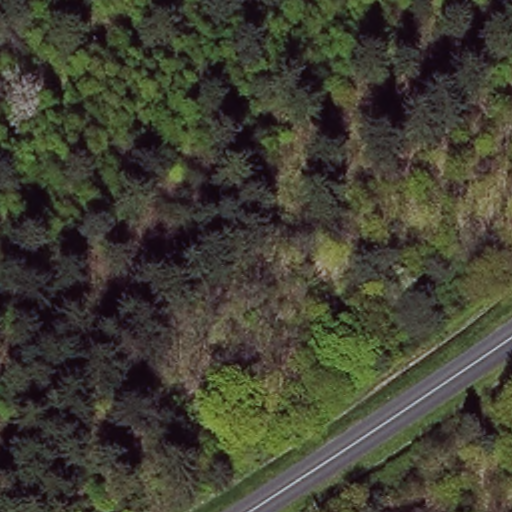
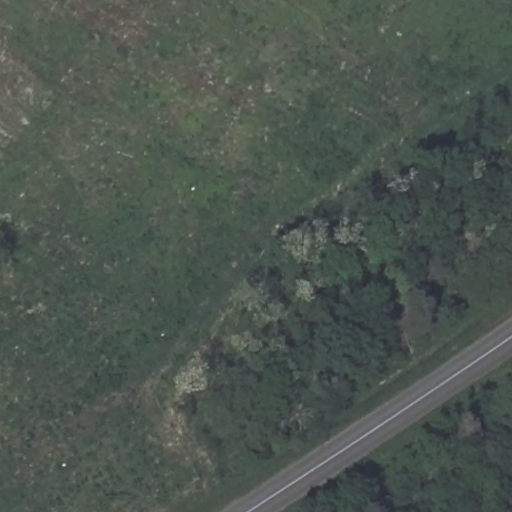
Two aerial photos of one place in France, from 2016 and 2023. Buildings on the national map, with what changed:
[]

